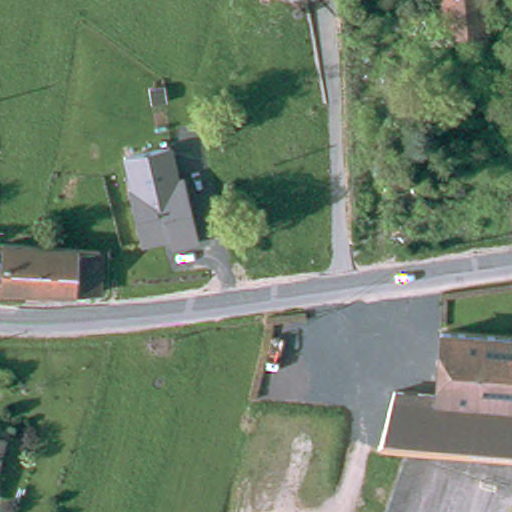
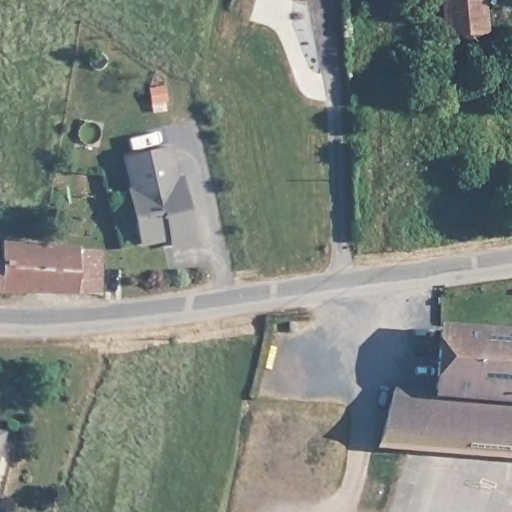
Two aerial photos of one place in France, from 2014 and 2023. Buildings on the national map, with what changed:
unchanged [(488,38),(448,42),(444,0),(485,0),(488,38)]
unchanged [(141,245),(129,189),(122,157),(172,145),(180,174),(183,173),(198,242),(172,247),(170,238),(141,245)]
unchanged [(8,270),(10,252),(106,256),(105,294),(7,292),(0,292),(0,271),(8,270)]
unchanged [(431,399),(440,333),(512,340),(512,465),(379,451),(394,394),(431,399)]
unchanged [(10,446),(0,482),(0,443),(10,446)]

